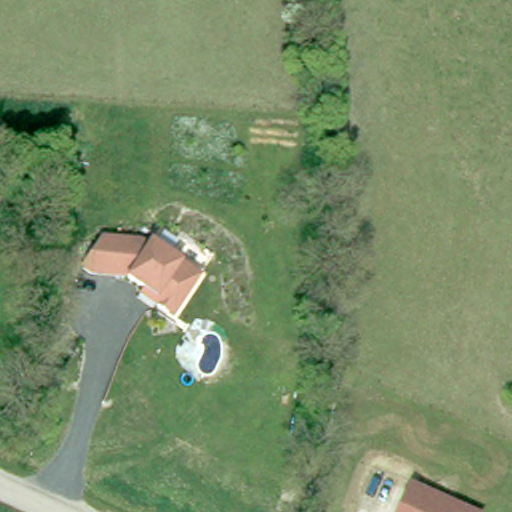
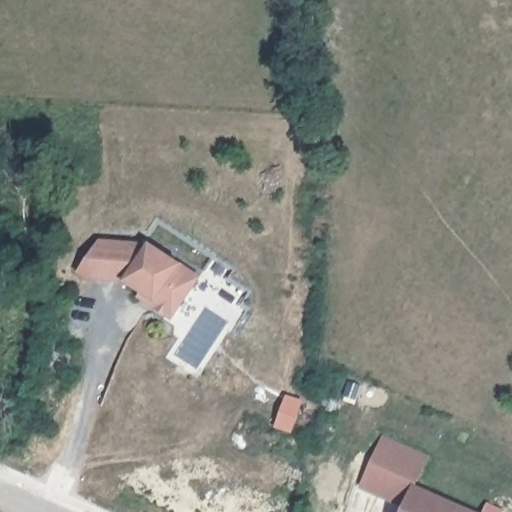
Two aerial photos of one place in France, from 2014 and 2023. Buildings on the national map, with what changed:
unchanged [(141,289),(126,279),(75,273),(100,239),(150,242),(203,275),(173,321),(137,297),(141,289)]
new [(412,482),(405,502),(361,487),(383,435),(429,454),(418,485),(412,482)]
unchanged [(481,512),(401,512),(412,482),(481,512)]

